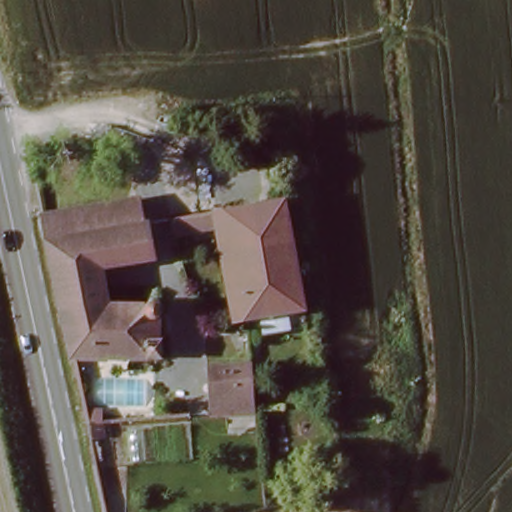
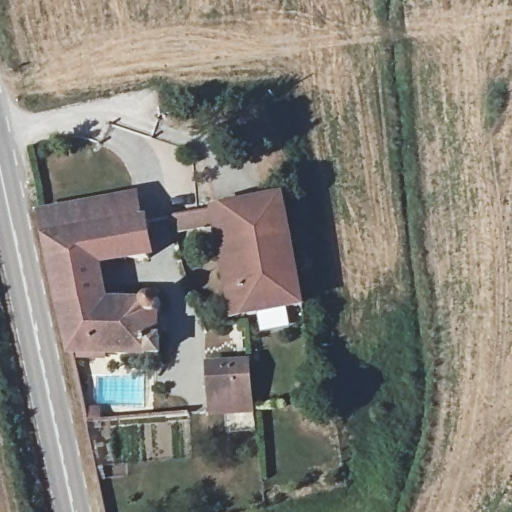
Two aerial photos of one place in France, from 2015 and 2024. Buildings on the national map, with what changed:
unchanged [(225,207),(247,203),(286,197),(286,198),(305,307),(243,314),(225,207)]
unchanged [(60,298),(55,273),(47,240),(42,215),(89,208),(135,200),(135,201),(137,210),(140,225),(149,224),(149,261),(102,269),(109,312),(150,306),(158,299),(163,296),(170,297),(175,303),(177,311),(173,318),(168,321),(162,321),(150,315),(149,337),(160,338),(160,357),(72,353),(60,298)]
unchanged [(243,314),(233,315),(216,222),(177,229),(175,215),(213,209),(225,207),(243,314)]
unchanged [(212,412),(207,366),(248,365),(253,410),(212,412)]

